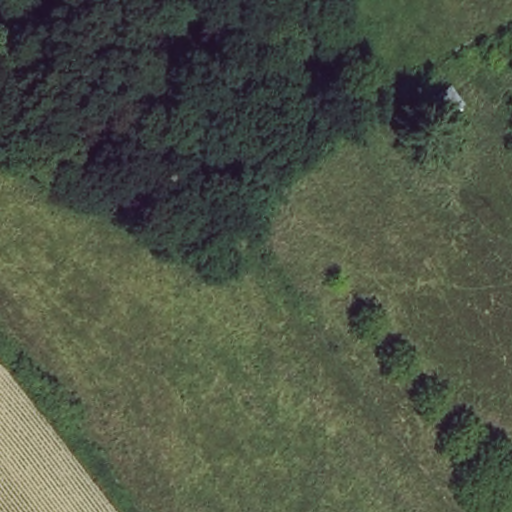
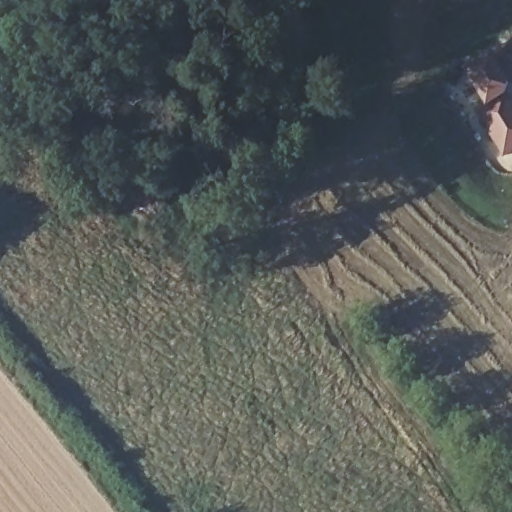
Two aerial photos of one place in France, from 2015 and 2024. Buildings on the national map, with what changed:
new [(511,84),(508,95),(512,101),(512,152),(503,157),(475,109),(484,102),(464,70),(494,52),(512,41),(512,83),(511,84)]

